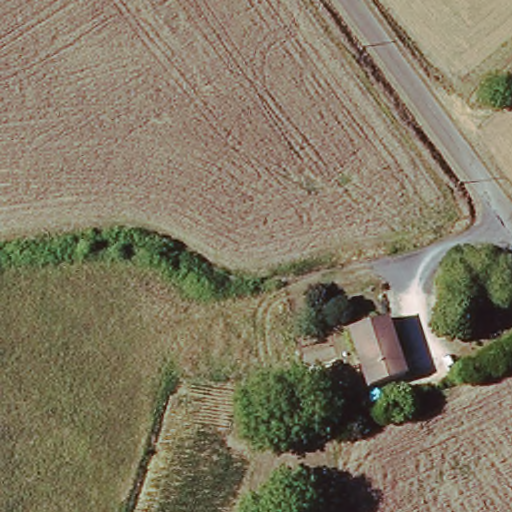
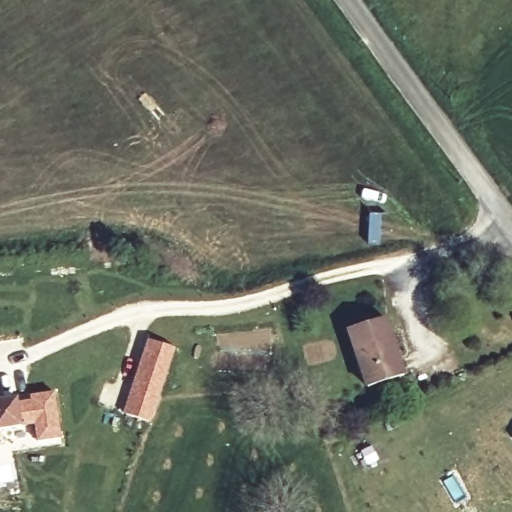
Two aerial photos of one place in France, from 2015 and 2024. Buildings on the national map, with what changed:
unchanged [(343,335),(380,322),(401,375),(364,390),(343,335)]
new [(123,415),(148,340),(175,350),(151,423),(123,415)]
new [(62,436),(37,440),(35,425),(0,430),(0,401),(18,398),(19,405),(31,397),(55,392),(62,436)]

